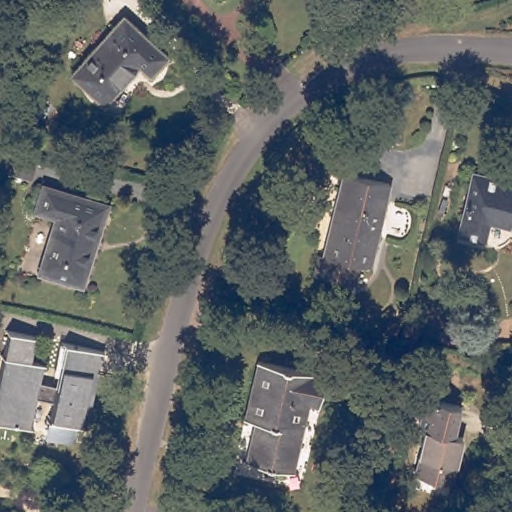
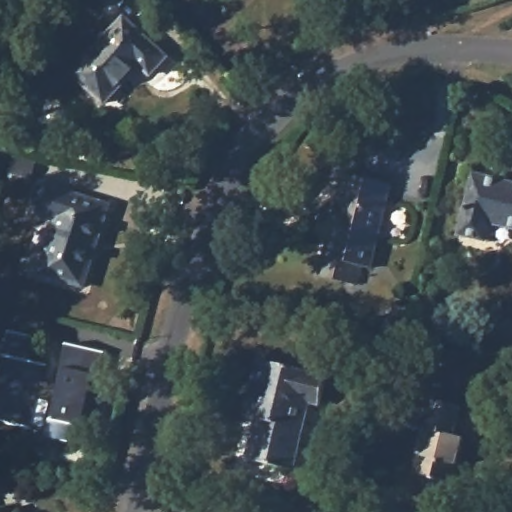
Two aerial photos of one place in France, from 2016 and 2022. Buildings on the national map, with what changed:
unchanged [(123,18),(164,57),(149,73),(139,64),(104,101),(73,71),(123,18)]
unchanged [(372,267),(365,265),(360,284),(324,275),(342,200),(348,172),(351,173),(392,183),(372,267)]
unchanged [(512,184),(512,228),(488,222),(483,241),(457,234),(472,174),(512,184)]
unchanged [(47,185),(112,205),(86,287),(43,273),(60,217),(39,210),(47,185)]
unchanged [(87,427),(83,443),(53,437),(61,401),(39,396),(33,426),(0,419),(0,402),(15,332),(41,337),(36,361),(47,364),(43,381),(65,386),(73,345),(107,352),(102,376),(90,428),(87,427)]
unchanged [(254,419),(244,416),(257,359),(325,375),(318,405),(307,403),(291,469),(246,459),(254,419)]
unchanged [(430,433),(423,431),(430,402),(464,410),(456,440),(466,443),(455,487),(419,478),(430,433)]

